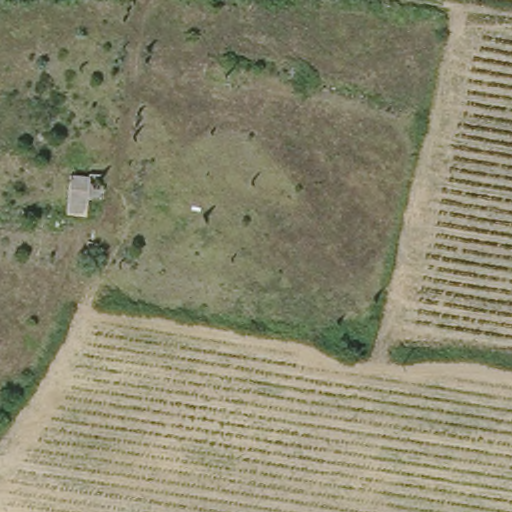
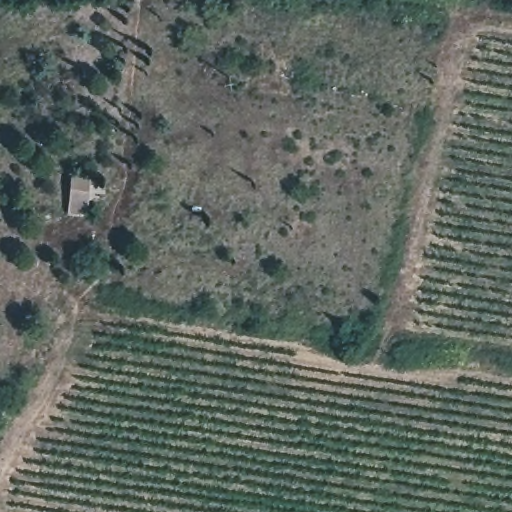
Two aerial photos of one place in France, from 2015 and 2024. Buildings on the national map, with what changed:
unchanged [(90,186),(88,210),(69,209),(71,184),(90,186)]

